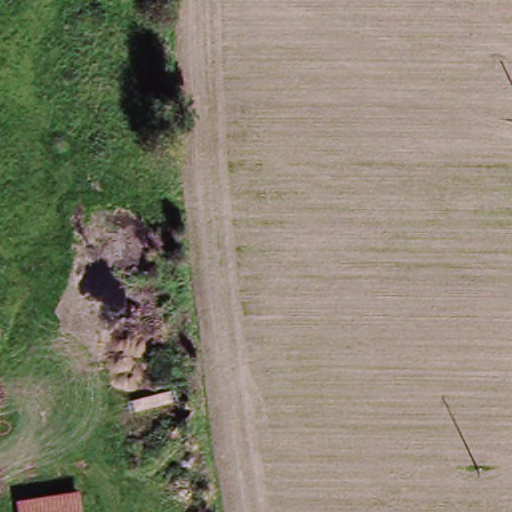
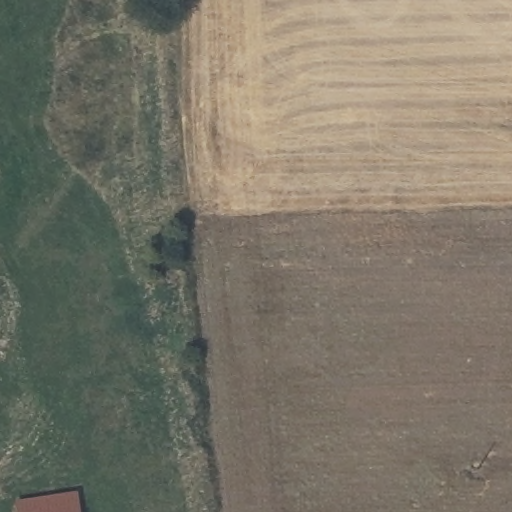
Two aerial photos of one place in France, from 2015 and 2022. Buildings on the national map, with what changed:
unchanged [(87,498),(89,512),(18,512),(16,504),(87,498)]

